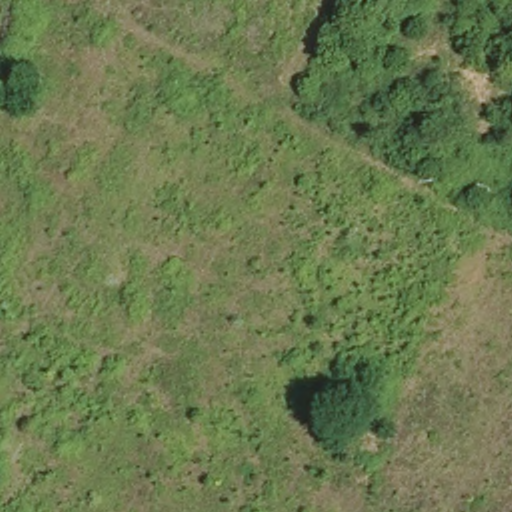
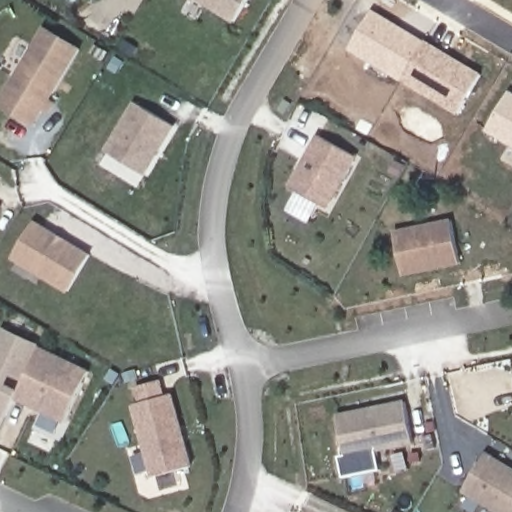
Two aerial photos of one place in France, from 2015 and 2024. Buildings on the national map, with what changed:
new [(193,0),(249,0),(235,25),(193,0)]
new [(483,75),(463,114),(352,49),(373,9),(483,75)]
new [(0,107),(0,101),(45,27),(82,50),(52,100),(57,104),(50,116),(45,112),(35,128),(0,107)]
new [(489,130),(511,92),(512,93),(512,143),(489,130)]
new [(147,177),(106,152),(135,102),(176,127),(147,177)]
new [(329,210),(290,187),(318,136),(357,157),(329,210)]
new [(0,207),(4,210),(0,216),(0,207)]
new [(461,266),(403,277),(394,232),(452,220),(461,266)]
new [(70,295),(12,261),(36,221),(92,256),(70,295)]
new [(4,373),(0,382),(0,326),(35,343),(17,380),(4,373)]
new [(84,370),(60,420),(10,395),(35,345),(84,370)]
new [(167,397),(174,396),(195,467),(154,479),(132,407),(141,404),(136,388),(162,381),(167,397)]
new [(1,413),(0,413),(0,386),(12,392),(1,413)]
new [(415,445),(346,460),(337,415),(406,401),(415,445)]
new [(512,468),(512,512),(495,512),(464,493),(487,453),(512,468)]

